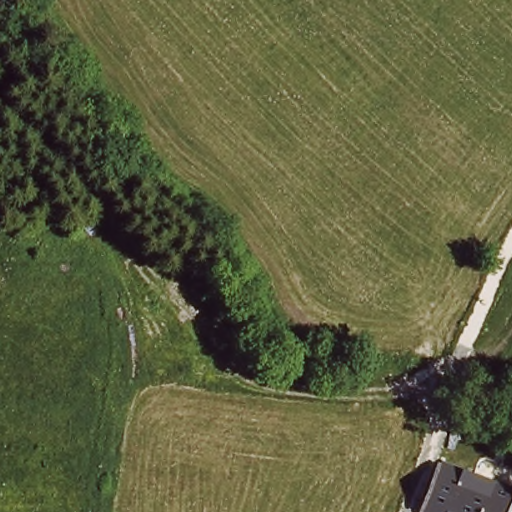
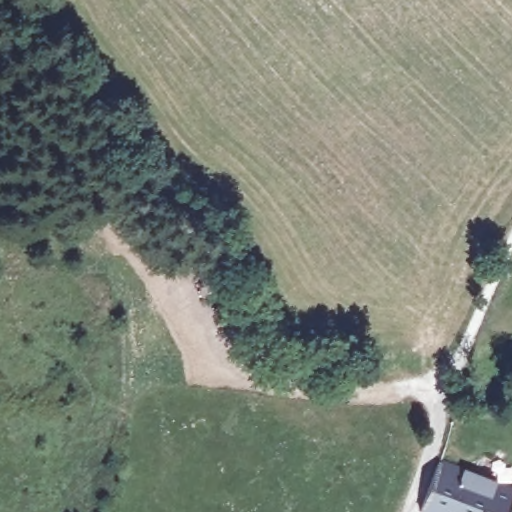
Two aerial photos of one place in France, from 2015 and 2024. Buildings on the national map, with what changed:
unchanged [(512,490),(512,507),(510,512),(420,512),(418,511),(436,457),(512,490)]

